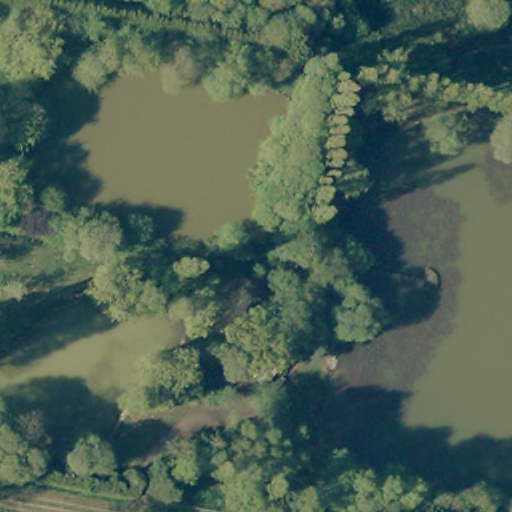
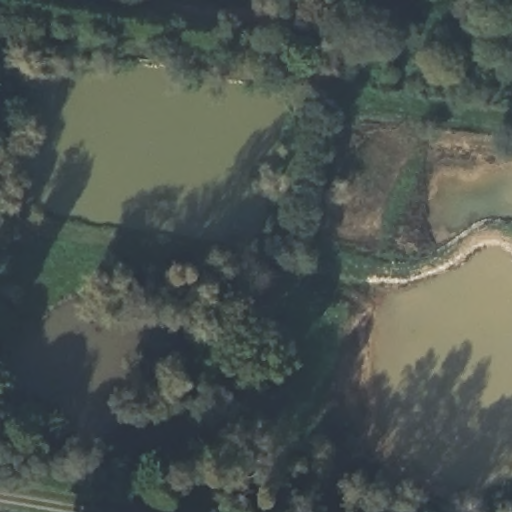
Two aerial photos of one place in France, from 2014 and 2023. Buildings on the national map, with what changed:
unchanged [(246,372),(276,348),(300,380),(272,399),(246,372)]

